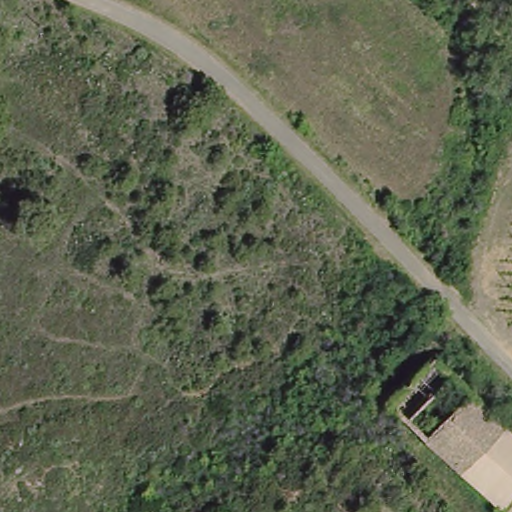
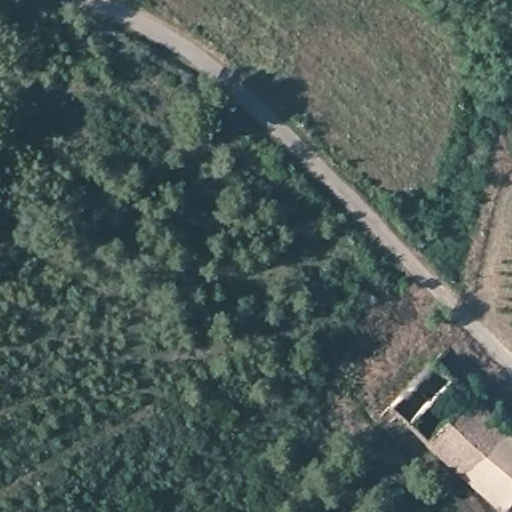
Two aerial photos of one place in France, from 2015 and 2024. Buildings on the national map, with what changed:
unchanged [(387,427),(379,418),(430,365),(512,445),(512,492),(493,512),(394,422),(387,427)]

